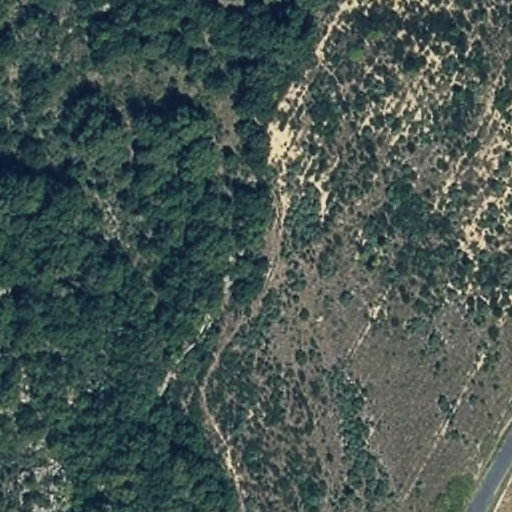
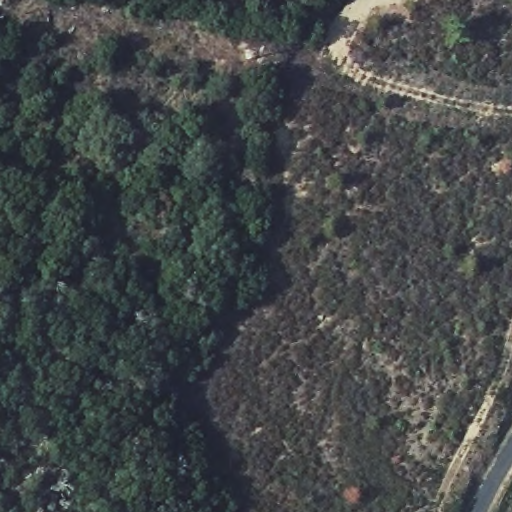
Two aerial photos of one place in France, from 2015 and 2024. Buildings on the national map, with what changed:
[]

